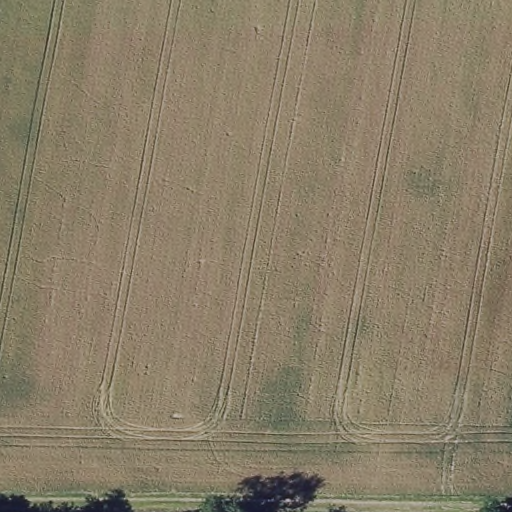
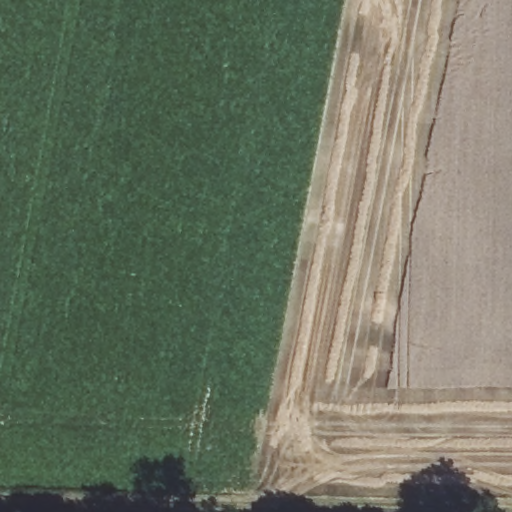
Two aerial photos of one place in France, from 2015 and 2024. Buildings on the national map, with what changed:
[]

